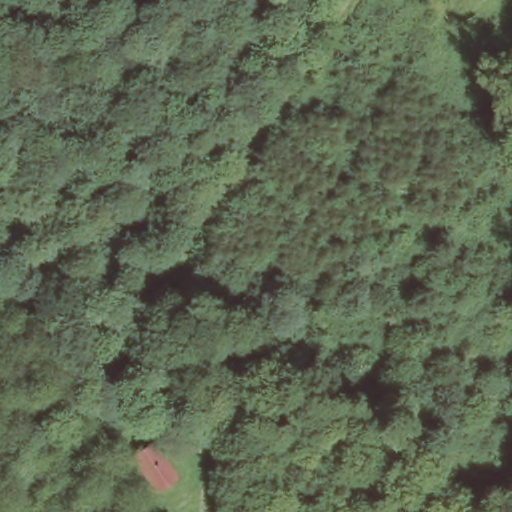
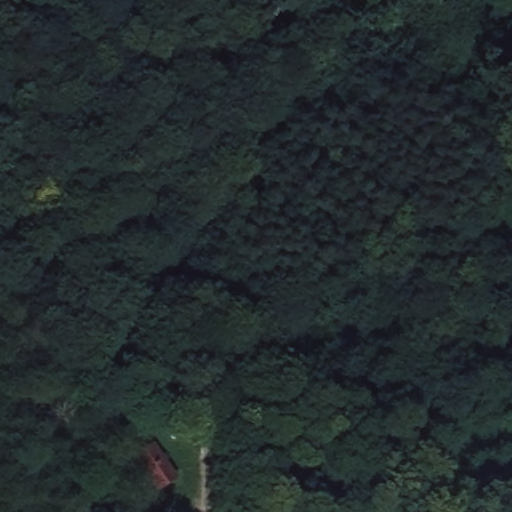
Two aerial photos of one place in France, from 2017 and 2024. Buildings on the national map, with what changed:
unchanged [(174,478),(157,491),(135,461),(153,447),(174,478)]

